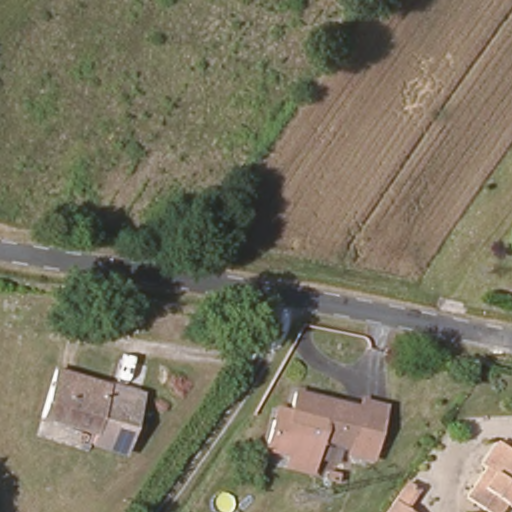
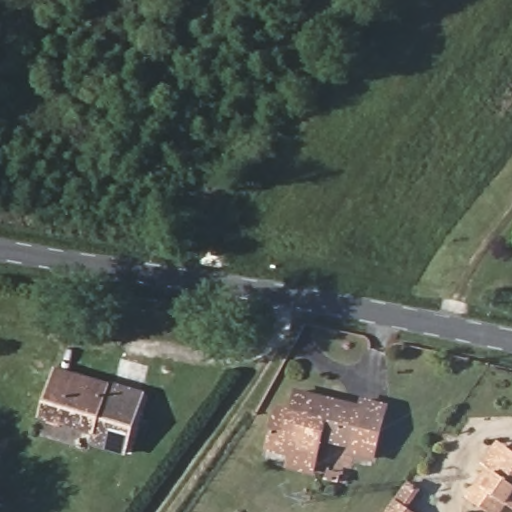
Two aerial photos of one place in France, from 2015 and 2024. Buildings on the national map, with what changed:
unchanged [(118,455),(86,443),(88,433),(38,411),(55,369),(138,399),(118,455)]
unchanged [(289,463),(292,449),(266,443),(273,415),(276,403),(290,407),(296,389),(361,408),(363,399),(387,404),(366,479),(342,474),(344,463),(317,456),(314,469),(289,463)]
unchanged [(511,511),(510,512),(490,512),(468,497),(489,467),(483,464),(500,443),(508,449),(512,451),(512,511),(511,511)]
unchanged [(393,499),(400,489),(409,496),(402,506),(410,512),(383,512),(393,499)]

